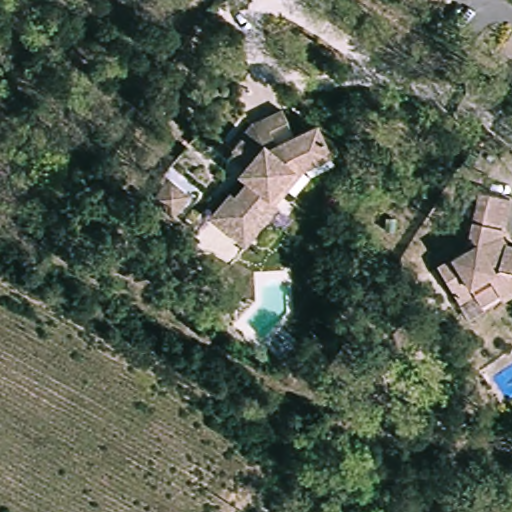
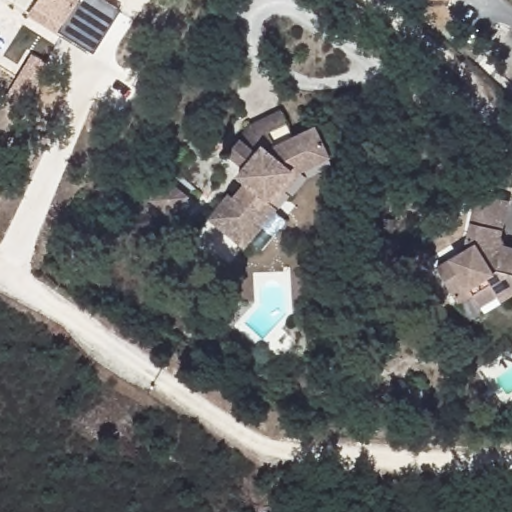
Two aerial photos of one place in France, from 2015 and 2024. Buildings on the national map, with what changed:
new [(91,56),(26,15),(36,0),(101,0),(118,10),(91,56)]
unchanged [(328,148),(292,166),(280,180),(285,184),(273,200),(276,204),(243,243),(208,214),(228,189),(232,193),(245,178),(237,172),(244,164),(227,149),(239,134),(250,121),(280,106),(292,133),(316,121),(328,148)]
unchanged [(187,198),(171,217),(152,200),(168,181),(187,198)]
unchanged [(435,263),(463,247),(477,189),(508,196),(500,231),(504,240),(512,243),(512,283),(498,292),(480,303),(473,292),(458,300),(453,292),(435,263)]

